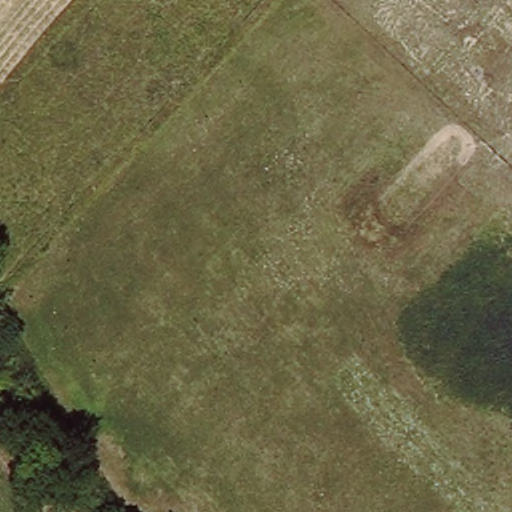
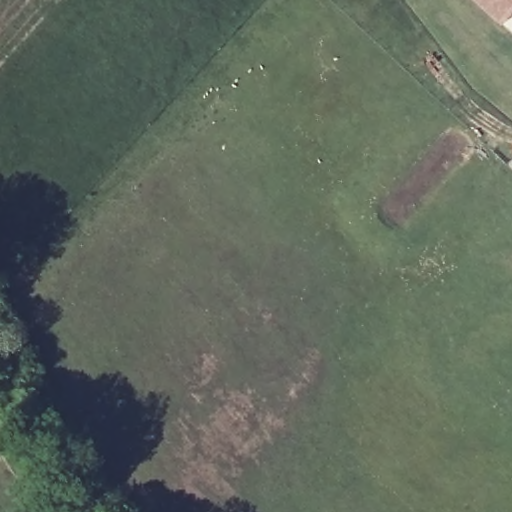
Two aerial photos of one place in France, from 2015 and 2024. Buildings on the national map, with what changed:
new [(502,26),(473,0),(512,0),(512,14),(502,26)]

